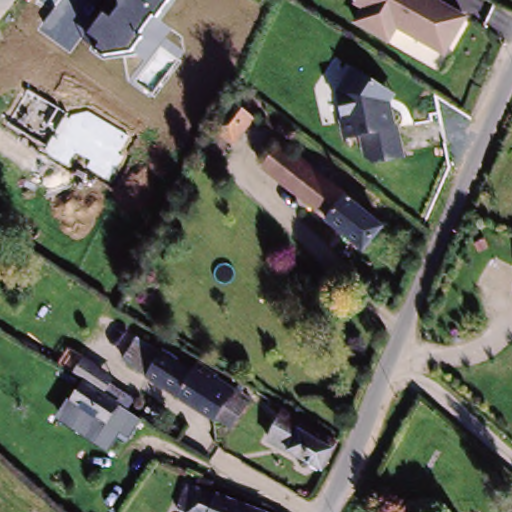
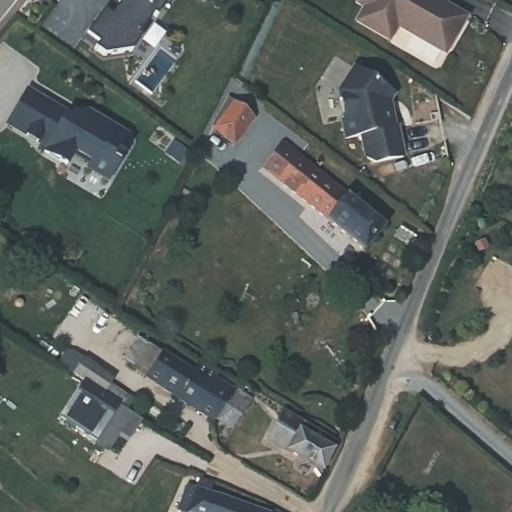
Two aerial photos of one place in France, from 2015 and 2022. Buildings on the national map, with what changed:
unchanged [(110,17),(120,7),(119,0),(170,0),(157,17),(153,15),(139,35),(142,36),(132,52),(105,55),(82,41),(102,11),(110,17)]
unchanged [(444,1),(472,19),(451,55),(402,26),(395,40),(361,21),(369,7),(360,2),(361,0),(436,0),(443,4),(444,1)]
unchanged [(403,127),(408,157),(380,162),(371,157),(367,135),(350,139),(347,121),(350,121),(344,91),(360,69),(393,91),(400,95),(395,102),(396,107),(400,127),(403,127)]
unchanged [(238,86),(244,90),(240,96),(234,91),(238,86)]
new [(27,89),(67,115),(90,110),(131,134),(107,180),(86,169),(87,164),(75,155),(66,166),(40,150),(45,146),(7,123),(27,89)]
unchanged [(235,104),(256,120),(240,144),(218,127),(235,104)]
unchanged [(277,142),(376,222),(358,244),(304,200),(260,164),(277,142)]
unchanged [(228,386),(230,384),(235,377),(242,382),(238,389),(246,395),(225,423),(210,413),(208,415),(120,355),(134,332),(185,368),(191,360),(210,373),(209,376),(227,388),(228,387),(228,386)]
unchanged [(105,420),(96,435),(61,413),(82,379),(72,372),(82,357),(110,375),(106,382),(122,393),(118,401),(140,415),(131,429),(127,435),(105,420)]
unchanged [(285,413),(335,443),(321,471),(270,441),(285,413)]
unchanged [(202,490),(205,480),(216,484),(213,493),(222,496),(221,500),(256,512),(185,512),(184,511),(192,486),(196,488),(202,490)]

